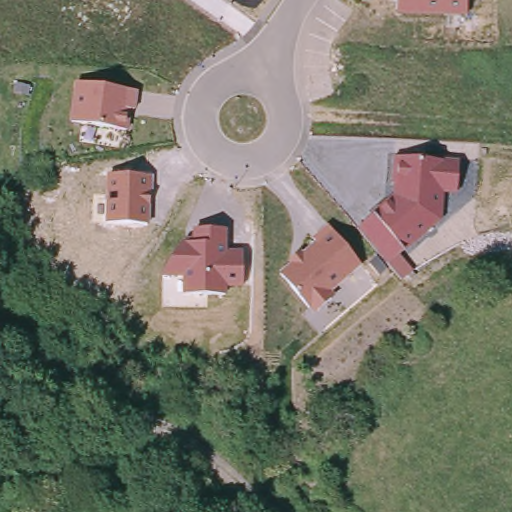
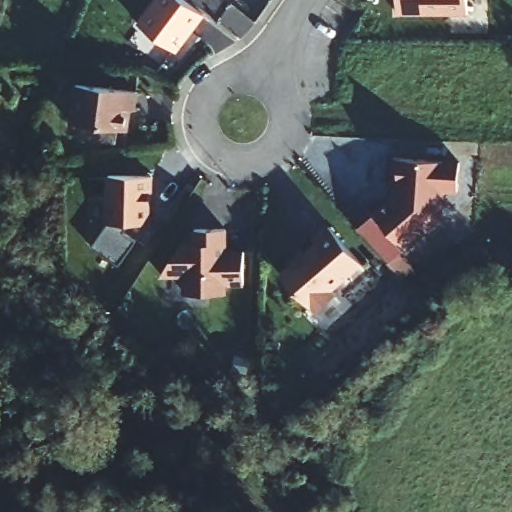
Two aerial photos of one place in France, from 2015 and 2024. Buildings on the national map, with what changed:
new [(183,0),(205,17),(177,54),(137,24),(155,0),(183,0)]
unchanged [(398,16),(398,0),(467,0),(467,15),(398,16)]
unchanged [(129,131),(70,125),(76,85),(139,93),(137,112),(131,111),(129,131)]
unchanged [(457,194),(444,194),(442,222),(405,252),(400,255),(413,272),(402,280),(387,264),(357,228),(373,214),(394,197),(395,187),(392,187),(393,159),(458,161),(457,194)]
unchanged [(150,224),(107,224),(107,176),(152,177),(153,193),(150,193),(150,224)]
unchanged [(312,239),(329,226),(362,265),(332,292),(336,296),(313,314),(280,274),(289,265),(287,263),(301,252),(302,253),(317,243),(312,239)]
unchanged [(244,288),(227,289),(226,294),(182,295),(182,278),(162,278),(180,246),(185,245),(185,240),(192,240),(192,230),(227,230),(227,250),(243,250),(244,288)]

